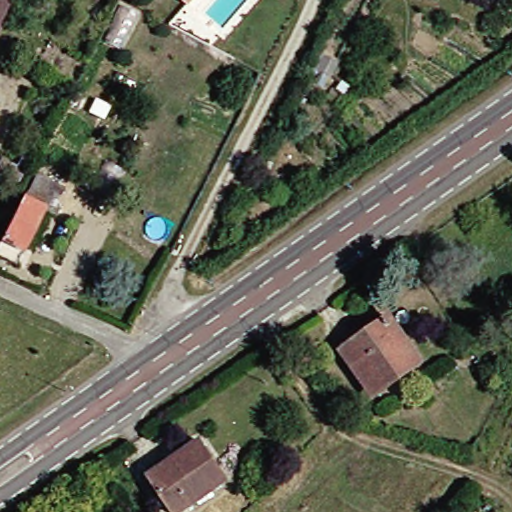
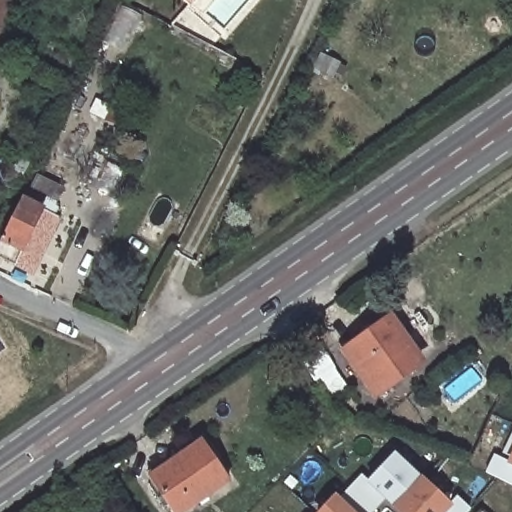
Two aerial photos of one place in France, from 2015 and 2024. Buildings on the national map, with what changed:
unchanged [(0,36),(0,0),(17,0),(0,36)]
unchanged [(187,6),(181,0),(193,0),(187,6)]
unchanged [(338,63),(331,76),(331,77),(320,71),(327,58),(338,63)]
unchanged [(108,107),(103,119),(89,113),(95,101),(108,107)]
unchanged [(64,189),(55,207),(60,209),(58,213),(44,207),(15,266),(0,258),(0,243),(33,175),(64,189)]
unchanged [(345,350),(388,320),(420,365),(377,395),(345,350)]
unchanged [(171,461),(202,439),(230,478),(183,512),(178,512),(148,471),(168,457),(171,461)]
new [(398,512),(391,506),(383,499),(371,512),(319,512),(336,493),(339,497),(361,474),(367,480),(395,452),(421,477),(421,476),(450,503),(457,495),(471,509),(469,512),(398,512)]
new [(508,460),(512,454),(512,483),(484,470),(493,453),(508,460)]
unchanged [(486,512),(474,512),(479,506),(486,512)]

